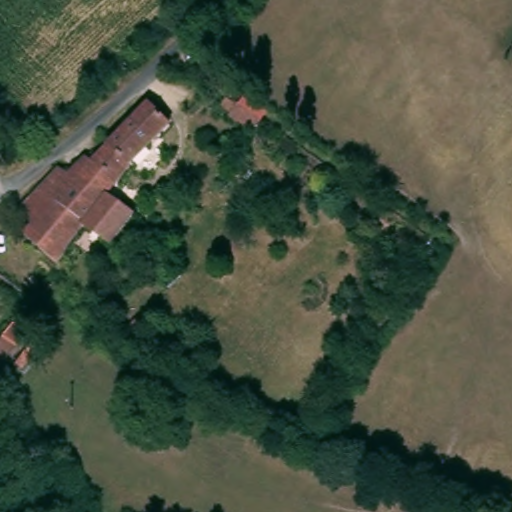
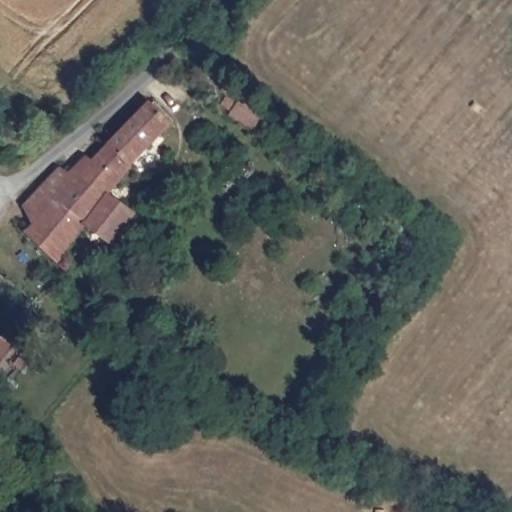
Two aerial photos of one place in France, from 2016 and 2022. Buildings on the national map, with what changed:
unchanged [(261,119),(253,130),(230,115),(239,103),(261,119)]
unchanged [(107,197),(134,216),(112,246),(90,229),(85,226),(58,266),(25,235),(33,226),(23,208),(60,169),(64,171),(88,147),(98,158),(149,105),(171,126),(118,184),(109,194),(107,197)]
unchanged [(29,330),(0,367),(0,340),(16,319),(29,330)]

